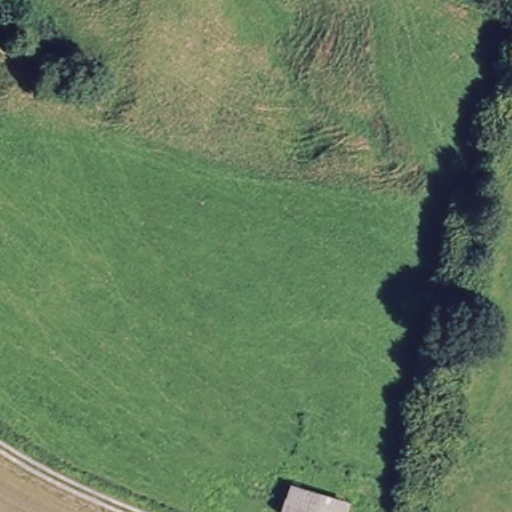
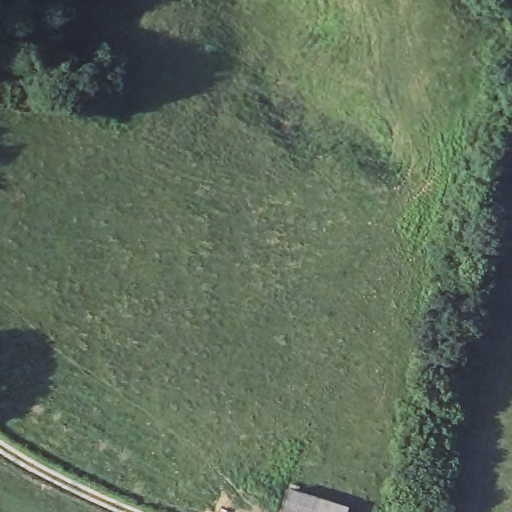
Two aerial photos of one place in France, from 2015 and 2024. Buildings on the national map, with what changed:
unchanged [(287,484),(341,501),(338,512),(279,512),(287,484)]

